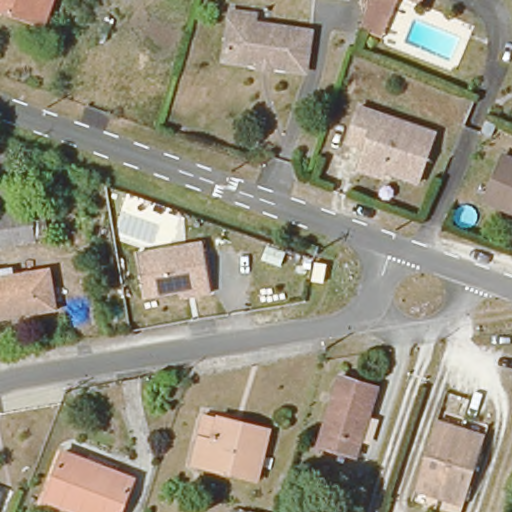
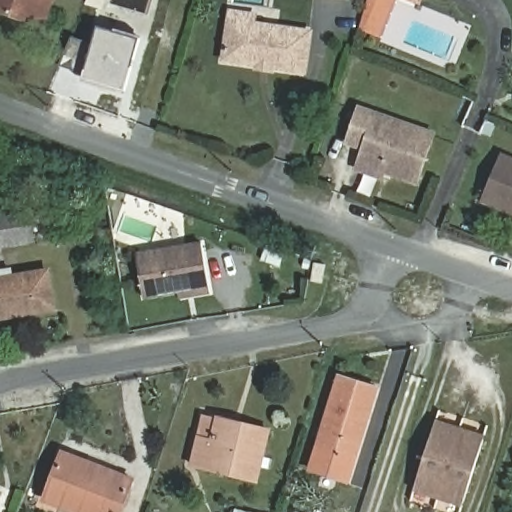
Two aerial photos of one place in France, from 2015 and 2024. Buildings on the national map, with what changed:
unchanged [(42,25),(0,10),(0,0),(51,0),(42,25)]
unchanged [(381,38),(363,31),(376,0),(397,0),(381,38)]
unchanged [(418,2),(415,0),(419,0),(418,2)]
unchanged [(254,16),(253,24),(310,32),(305,71),(273,66),(274,62),(256,59),(256,64),(224,59),(230,12),(254,16)]
new [(71,36),(93,42),(96,32),(113,37),(115,31),(140,38),(125,90),(82,77),(85,72),(59,65),(71,36)]
unchanged [(385,172),(382,177),(356,168),(358,162),(363,149),(346,142),(359,107),(435,134),(420,177),(417,183),(385,172)]
unchanged [(512,164),(512,218),(483,207),(503,160),(512,164)]
unchanged [(23,210),(29,240),(0,245),(0,214),(23,210)]
unchanged [(180,298),(180,292),(145,297),(137,252),(201,242),(211,293),(180,298)]
unchanged [(11,269),(12,276),(47,270),(54,308),(0,317),(0,271),(11,269)]
unchanged [(377,388),(354,458),(317,446),(340,376),(377,388)]
unchanged [(234,422),(232,430),(265,437),(255,480),(194,465),(200,438),(201,438),(206,417),(219,420),(219,418),(234,422)]
unchanged [(483,437),(462,504),(414,488),(435,422),(483,437)]
unchanged [(121,512),(76,512),(44,500),(62,452),(133,480),(121,512)]

